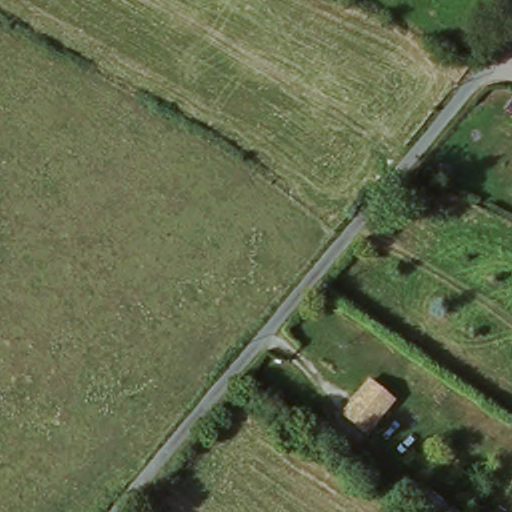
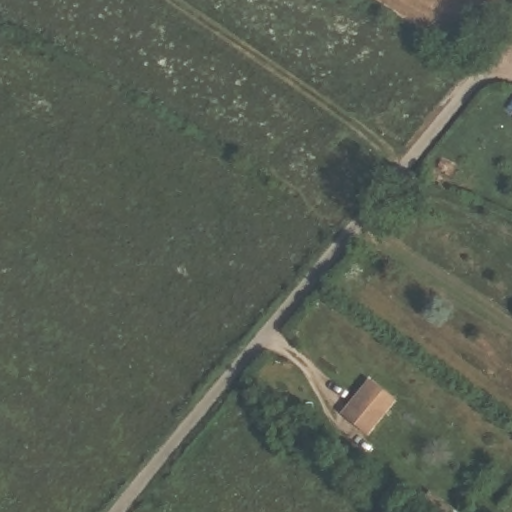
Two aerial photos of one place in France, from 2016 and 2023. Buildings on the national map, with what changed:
unchanged [(340,414),(349,404),(370,379),(394,402),(373,426),(364,437),(340,414)]
unchanged [(417,507),(427,492),(454,509),(452,512),(424,512),(417,507)]

